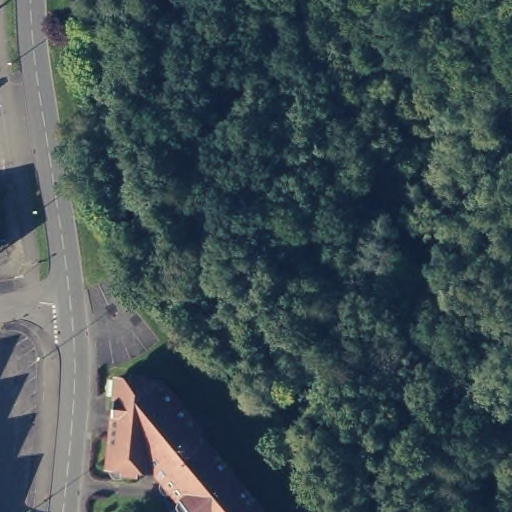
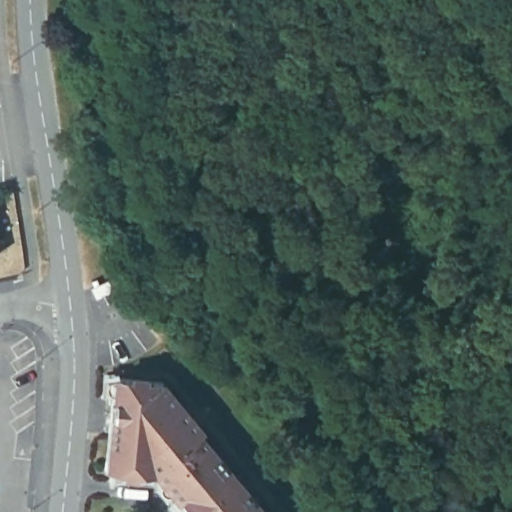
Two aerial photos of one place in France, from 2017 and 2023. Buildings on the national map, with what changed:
unchanged [(167,472),(167,466),(157,456),(155,458),(156,457),(151,460),(107,456),(115,367),(162,372),(202,420),(199,422),(273,511),(275,509),(278,512),(200,512),(167,472)]

